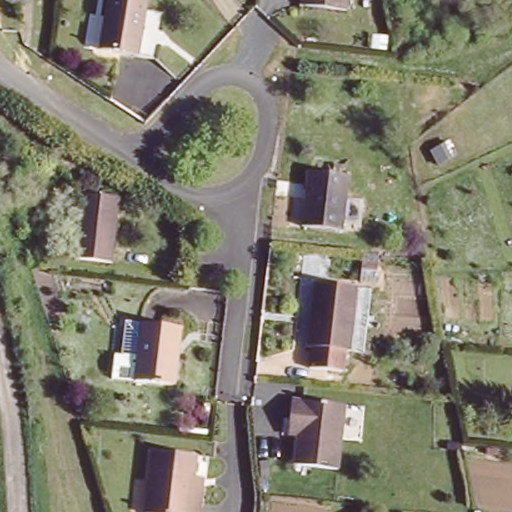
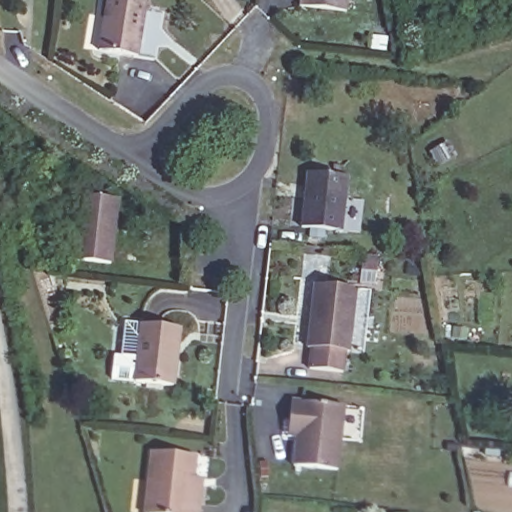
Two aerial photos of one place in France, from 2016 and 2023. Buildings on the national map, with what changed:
unchanged [(139,51),(102,46),(107,0),(145,0),(139,51)]
unchanged [(345,13),(299,7),(300,0),(347,0),(345,13)]
unchanged [(342,228),(301,223),(307,169),(349,174),(342,228)]
unchanged [(113,260),(78,256),(85,195),(120,198),(113,260)]
unchanged [(307,341),(304,340),(310,279),(350,283),(344,345),(340,345),(337,367),(305,363),(307,341)]
unchanged [(177,385),(135,381),(142,324),(185,329),(177,385)]
unchanged [(350,405),(340,470),(295,466),(300,436),(290,435),(292,426),(295,399),(350,405)]
unchanged [(189,477),(200,478),(199,486),(195,512),(139,512),(147,449),(192,454),(189,477)]

